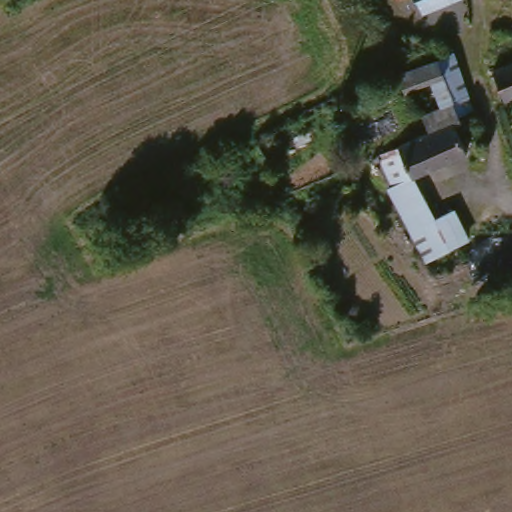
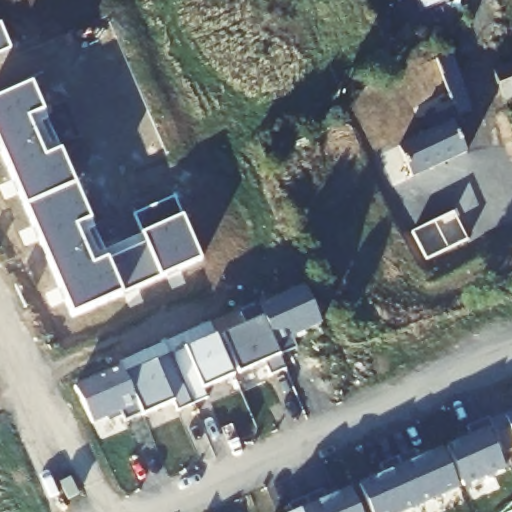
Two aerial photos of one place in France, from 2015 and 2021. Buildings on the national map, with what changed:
unchanged [(420,0),(453,0),(423,10),(420,0)]
new [(14,51),(0,57),(0,26),(2,25),(14,51)]
unchanged [(402,74),(438,60),(453,54),(468,91),(454,98),(446,79),(410,93),(402,74)]
unchanged [(512,66),(512,98),(510,99),(498,72),(512,66)]
new [(44,111),(27,118),(31,126),(40,123),(44,131),(35,136),(44,156),(60,149),(92,223),(77,229),(94,267),(146,245),(134,216),(175,199),(202,262),(72,317),(0,149),(0,101),(33,86),(44,111)]
unchanged [(433,134),(426,116),(457,103),(463,120),(465,122),(459,125),(467,144),(471,154),(401,185),(396,187),(382,156),(433,134)]
unchanged [(411,199),(442,185),(469,243),(437,258),(411,199)]
new [(305,289),(320,325),(292,338),(297,350),(281,358),(259,309),(305,289)]
new [(246,327),(241,316),(258,307),(259,309),(281,358),(286,371),(271,378),(265,365),(239,376),(222,337),(246,327)]
new [(217,336),(235,378),(204,391),(207,400),(193,407),(171,356),(217,336)]
new [(171,356),(193,407),(177,413),(174,404),(143,417),(142,416),(125,376),(171,356)]
new [(122,368),(125,376),(142,416),(125,424),(120,413),(92,425),(77,388),(122,368)]
new [(512,412),(512,450),(503,454),(489,422),(512,412)]
new [(470,438),(467,429),(488,420),(489,422),(503,454),(498,456),(505,469),(463,487),(447,448),(470,438)]
new [(414,451),(418,460),(442,450),(458,488),(417,506),(397,459),(414,451)]
new [(383,475),(379,466),(397,459),(417,506),(404,512),(371,512),(360,486),(383,475)]
new [(322,491),(327,500),(350,490),(360,512),(311,512),(305,499),(322,491)]
new [(287,506),(305,499),(311,512),(290,512),(287,506)]

